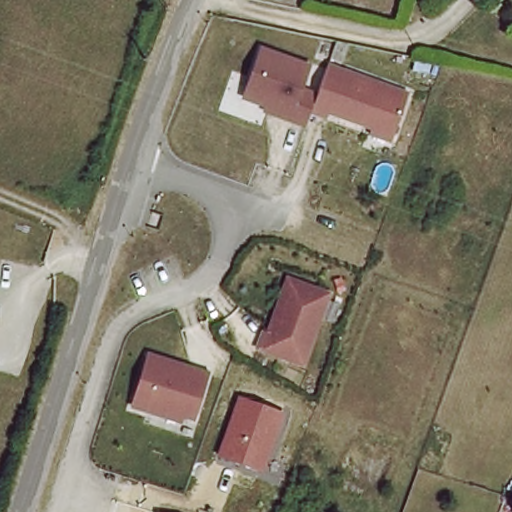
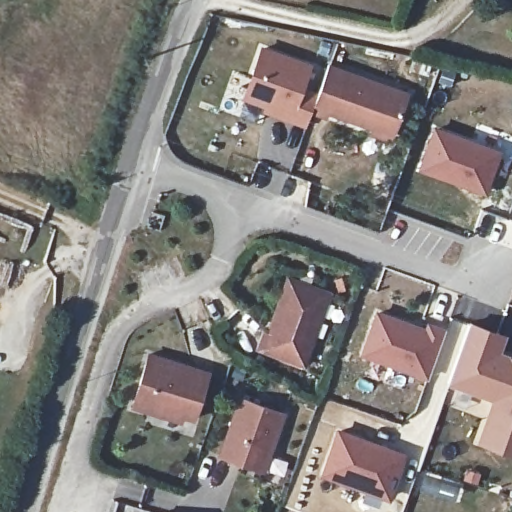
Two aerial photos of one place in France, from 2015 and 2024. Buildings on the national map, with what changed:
unchanged [(313,64),(306,82),(319,88),(328,61),(409,91),(390,144),(368,136),(370,130),(328,115),(326,120),(311,115),(307,126),(264,113),(266,109),(241,100),(258,45),(313,64)]
new [(484,190),(421,168),(434,129),(498,153),(484,190)]
unchanged [(307,364),(307,365),(255,346),(282,274),(334,293),(307,364)]
new [(375,310),(423,325),(425,319),(447,327),(428,381),(359,356),(375,310)]
new [(480,441),(493,398),(447,380),(469,323),(502,337),(496,354),(512,360),(512,453),(480,441)]
unchanged [(213,370),(197,419),(134,403),(148,351),(213,370)]
unchanged [(217,457),(238,397),(285,414),(266,472),(217,457)]
new [(388,497),(323,473),(338,431),(402,455),(388,497)]

